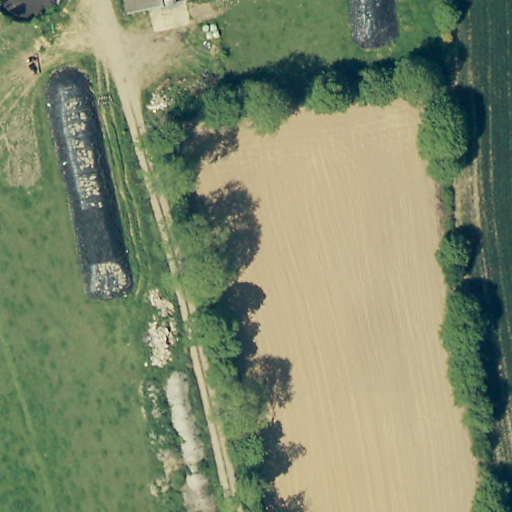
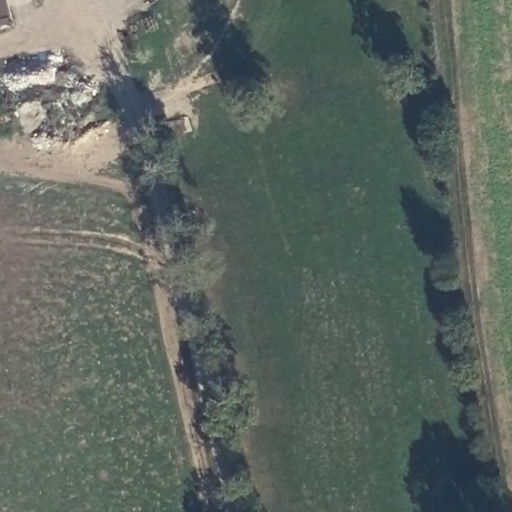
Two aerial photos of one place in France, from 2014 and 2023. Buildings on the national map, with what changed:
unchanged [(125,10),(123,0),(168,0),(125,10)]

